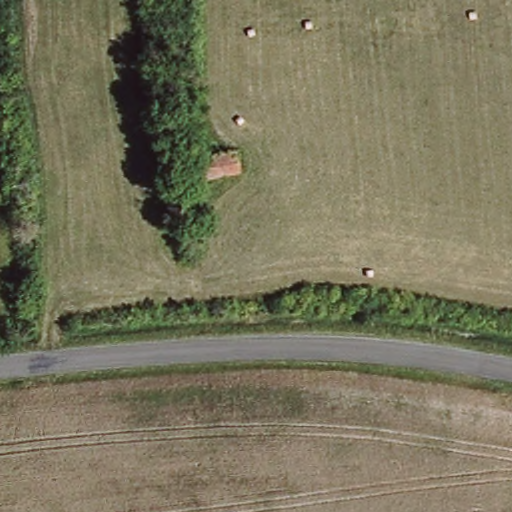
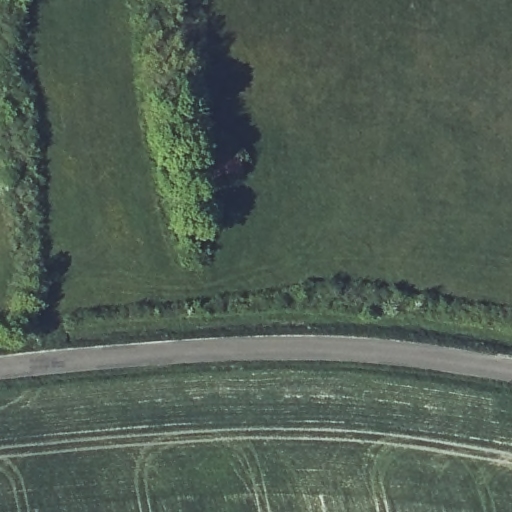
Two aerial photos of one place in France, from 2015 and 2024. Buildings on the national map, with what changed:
unchanged [(241,173),(204,178),(200,155),(240,148),(241,173)]

